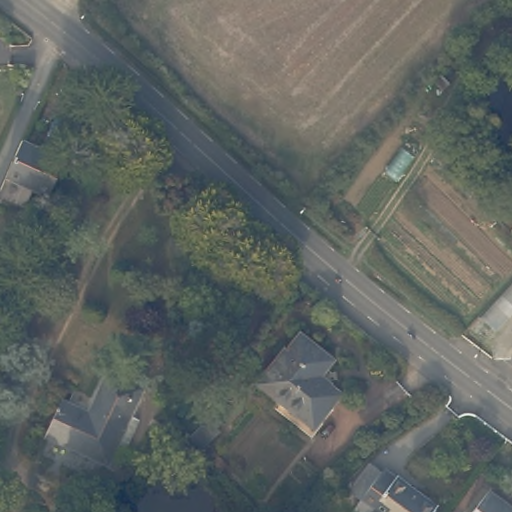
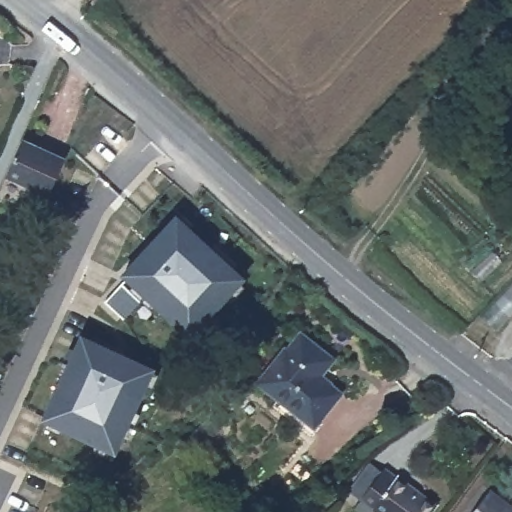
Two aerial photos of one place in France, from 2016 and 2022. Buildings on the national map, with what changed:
unchanged [(15,159),(26,134),(71,154),(54,191),(30,180),(21,198),(2,190),(15,159)]
new [(176,214),(246,278),(191,340),(121,274),(176,214)]
new [(81,334),(156,367),(136,411),(140,413),(129,439),(124,436),(116,454),(42,420),(81,334)]
unchanged [(308,432),(257,382),(289,350),(290,351),(306,336),(337,364),(322,380),(340,400),(308,432)]
demolished [(122,443),(115,460),(52,430),(68,394),(92,405),(104,381),(143,400),(137,414),(122,443)]
unchanged [(224,432),(205,451),(192,438),(212,420),(224,432)]
unchanged [(407,476),(407,475),(447,502),(441,512),(385,512),(383,511),(382,512),(371,512),(366,508),(369,503),(360,496),(380,469),(381,468),(390,473),(393,468),(407,476)]
unchanged [(491,488),(512,503),(512,512),(474,512),(491,488)]

